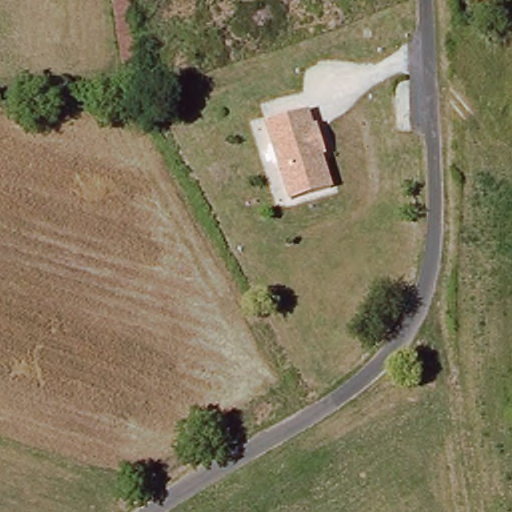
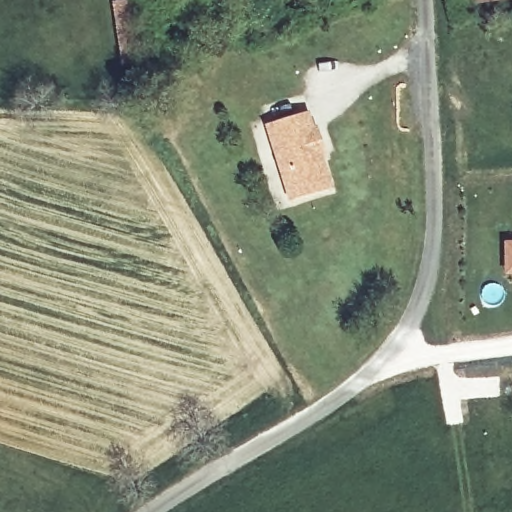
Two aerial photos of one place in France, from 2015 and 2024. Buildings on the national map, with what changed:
unchanged [(478,2),(478,0),(490,0),(478,2)]
unchanged [(287,203),(265,127),(305,115),(327,193),(287,203)]
new [(512,240),(512,275),(502,276),(501,241),(512,240)]

